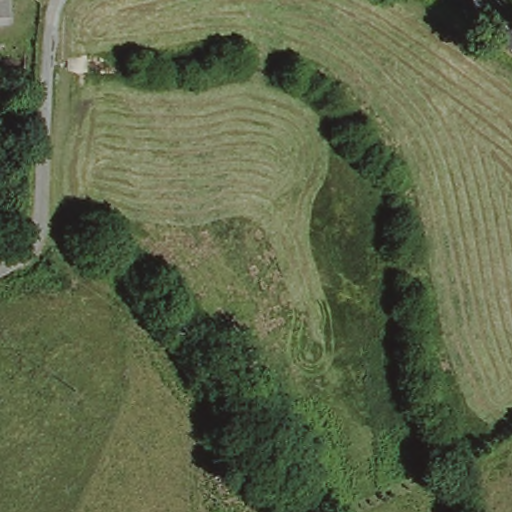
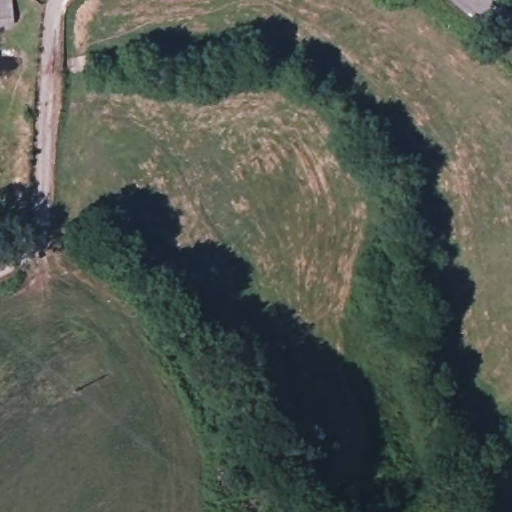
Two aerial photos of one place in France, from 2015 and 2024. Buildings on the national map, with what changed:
unchanged [(0,0),(15,0),(15,27),(0,28),(0,0)]

